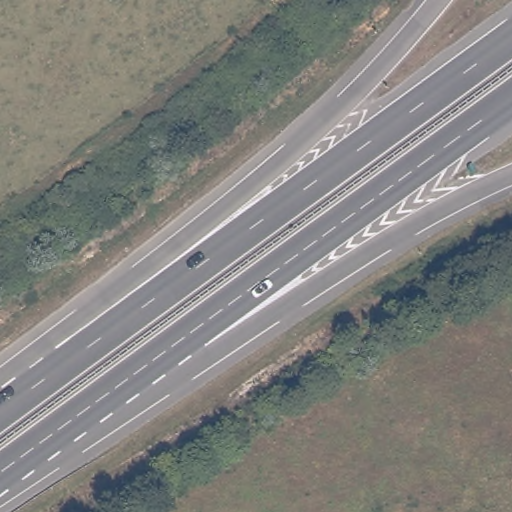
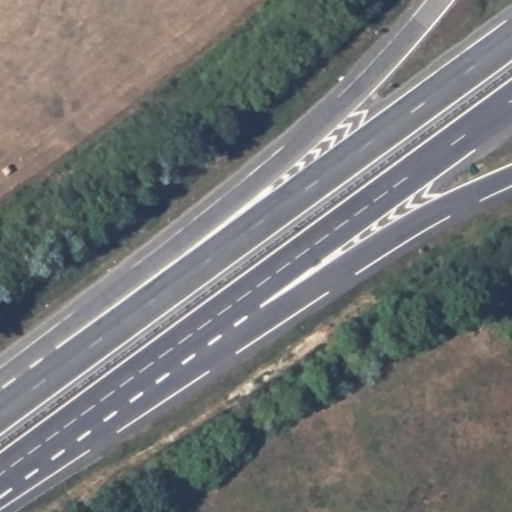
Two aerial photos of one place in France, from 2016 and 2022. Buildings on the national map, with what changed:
[]

